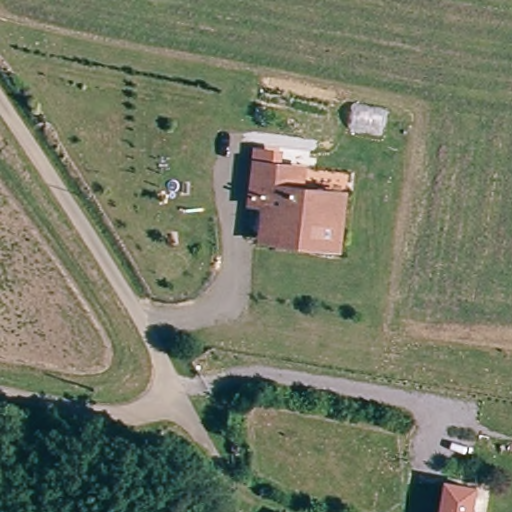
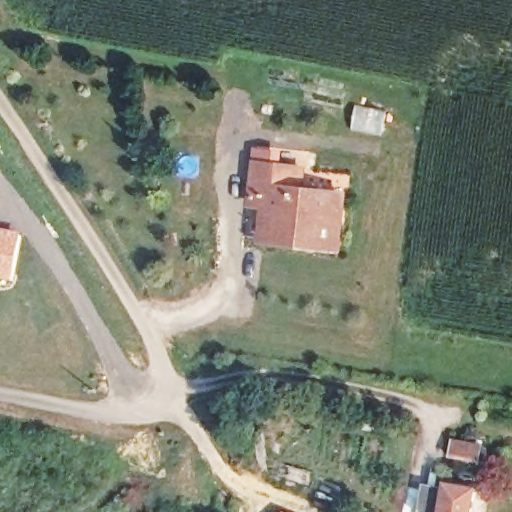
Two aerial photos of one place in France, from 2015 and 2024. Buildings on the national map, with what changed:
unchanged [(334,259),(317,257),(318,247),(266,241),(270,211),(246,208),(250,176),(300,181),(297,199),(340,204),(334,259)]
new [(13,268),(0,267),(0,224),(20,226),(13,268)]
unchanged [(470,512),(438,512),(442,483),(473,488),(470,512)]
unchanged [(282,511),(285,512),(282,512),(282,511)]

